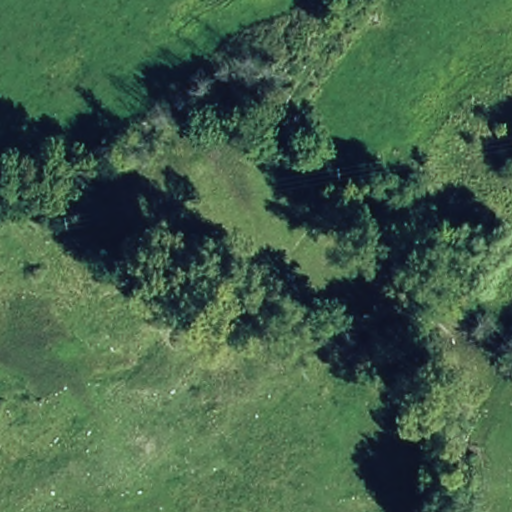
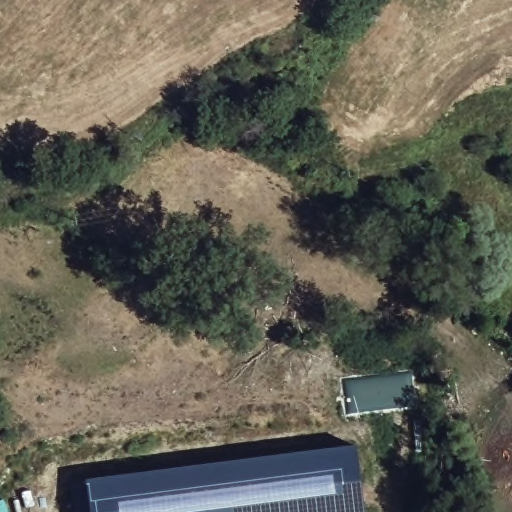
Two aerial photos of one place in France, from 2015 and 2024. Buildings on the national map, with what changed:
new [(356,443),(365,512),(90,512),(85,478),(356,443)]

